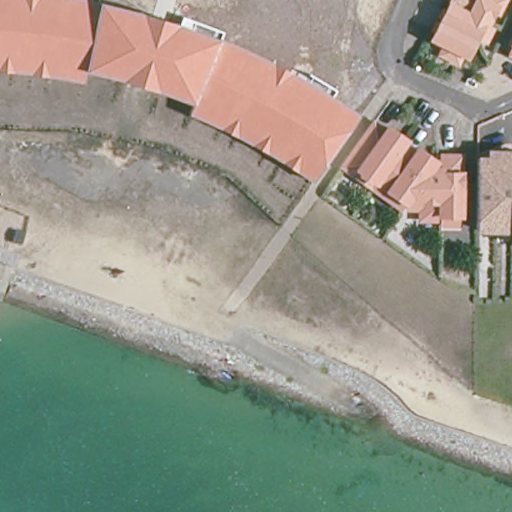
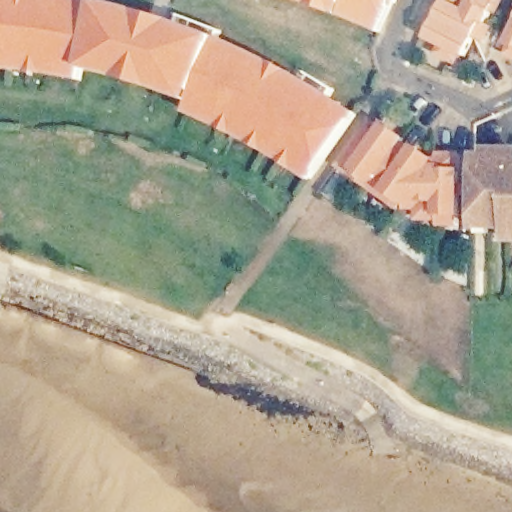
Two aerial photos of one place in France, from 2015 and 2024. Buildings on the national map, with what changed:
unchanged [(260,148),(229,130),(190,114),(195,101),(86,68),(85,83),(30,73),(0,72),(0,0),(89,0),(101,2),(145,12),(182,24),(225,39),(358,114),(312,181),(260,148)]
new [(378,33),(307,6),(286,0),(394,0),(378,33)]
unchanged [(441,46),(435,43),(455,0),(501,0),(489,26),(481,42),(479,41),(470,60),(462,56),(457,67),(436,58),(441,46)]
unchanged [(512,54),(512,61),(510,59),(512,54)]
unchanged [(441,228),(441,223),(421,223),(421,212),(414,212),(395,199),(388,194),(392,189),(380,181),(377,185),(359,172),(362,168),(355,163),(350,159),(372,129),(375,125),(387,133),(390,129),(395,133),(408,142),(405,147),(408,148),(416,155),(417,154),(420,151),(425,154),(437,163),(443,163),(443,157),(463,158),(462,179),(462,218),(461,229),(441,228)]
unchanged [(511,248),(511,234),(476,235),(478,159),(489,159),(490,152),(512,151),(512,248),(511,248)]

